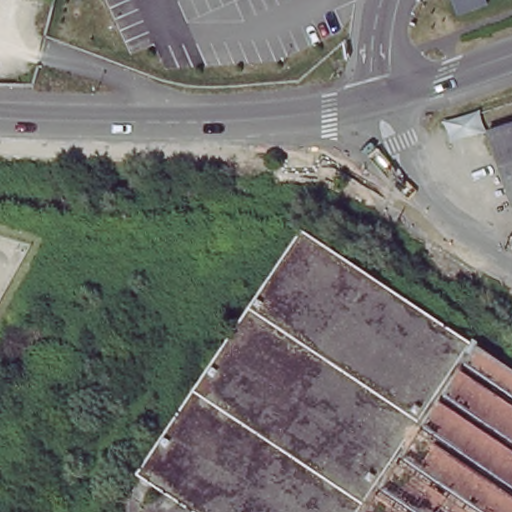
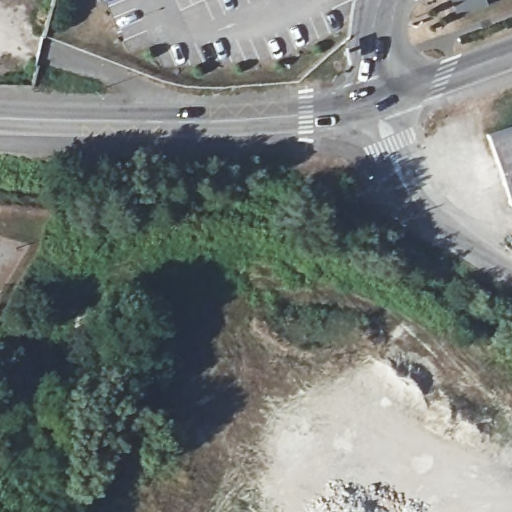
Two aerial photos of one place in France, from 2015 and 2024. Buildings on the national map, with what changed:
unchanged [(507,201),(485,130),(512,122),(512,199),(507,201)]
demolished [(137,471),(298,230),(301,226),(329,245),(512,370),(512,512),(197,512),(137,471)]
unchanged [(512,233),(512,243),(508,241),(512,233)]

